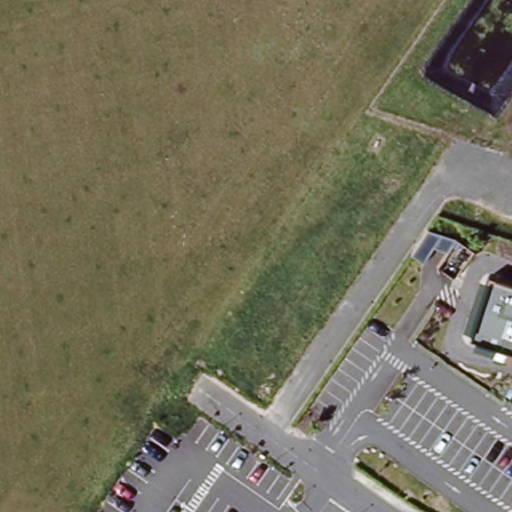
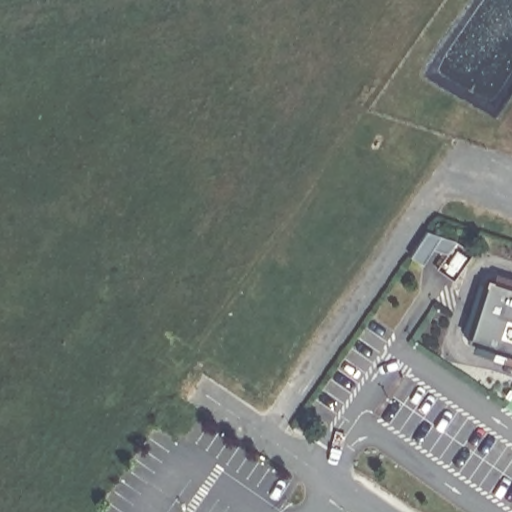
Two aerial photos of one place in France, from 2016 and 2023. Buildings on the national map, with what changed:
unchanged [(512,285),(512,353),(467,338),(487,277),(488,277),(512,285)]

